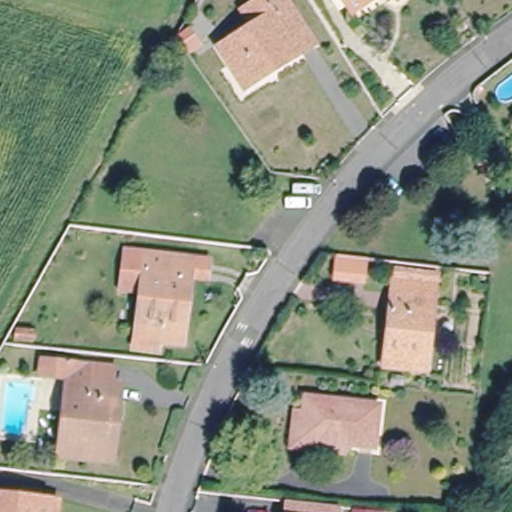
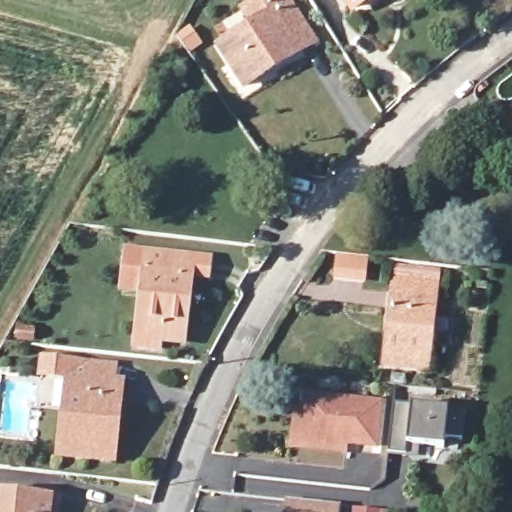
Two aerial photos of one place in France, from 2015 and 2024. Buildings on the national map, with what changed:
unchanged [(247,78),(225,37),(260,17),(251,1),(252,0),(295,0),(316,36),(247,78)]
unchanged [(371,0),(353,11),(347,0),(371,0)]
unchanged [(137,340),(142,294),(122,291),(125,257),(128,244),(194,252),(193,265),(182,345),(137,340)]
unchanged [(367,278),(339,278),(341,262),(367,265),(367,278)]
unchanged [(382,362),(391,289),(393,276),(433,281),(432,292),(424,364),(382,362)]
unchanged [(116,411),(109,410),(106,448),(61,446),(66,372),(40,370),(40,352),(66,355),(81,356),(107,358),(106,373),(120,374),(116,411)]
unchanged [(287,449),(290,412),(301,413),(305,399),(378,407),(373,447),(343,443),(341,454),(287,449)]
new [(395,404),(411,406),(448,411),(464,412),(462,439),(445,437),(445,447),(407,443),(405,455),(389,453),(395,404)]
unchanged [(0,492),(45,498),(56,499),(54,512),(0,512),(0,492)]
unchanged [(340,512),(285,512),(285,498),(341,506),(340,512)]

